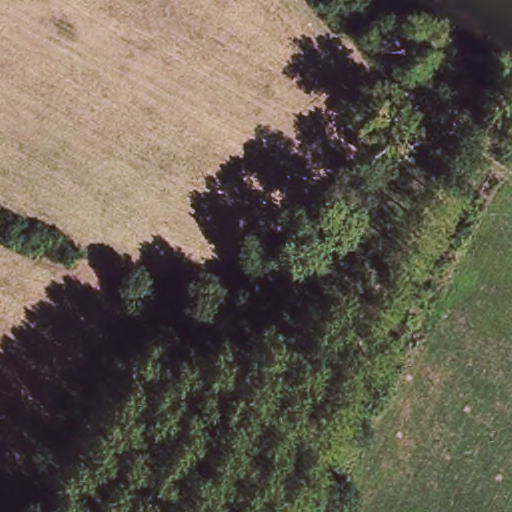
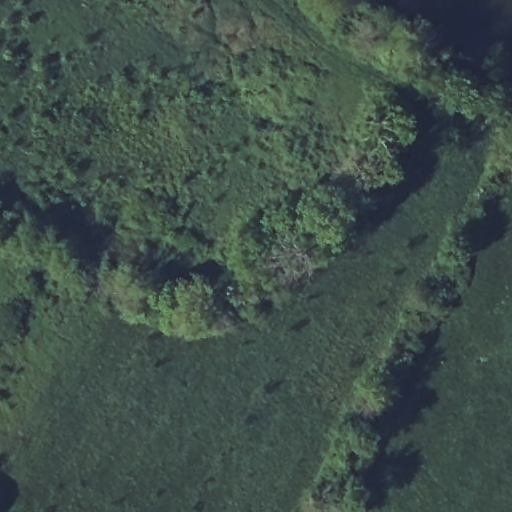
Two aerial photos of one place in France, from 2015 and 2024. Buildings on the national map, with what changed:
[]

